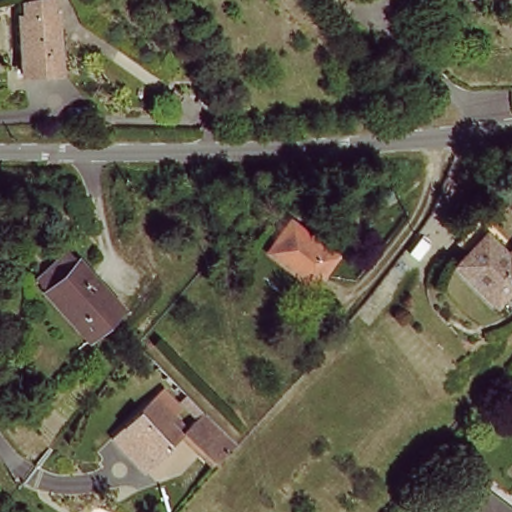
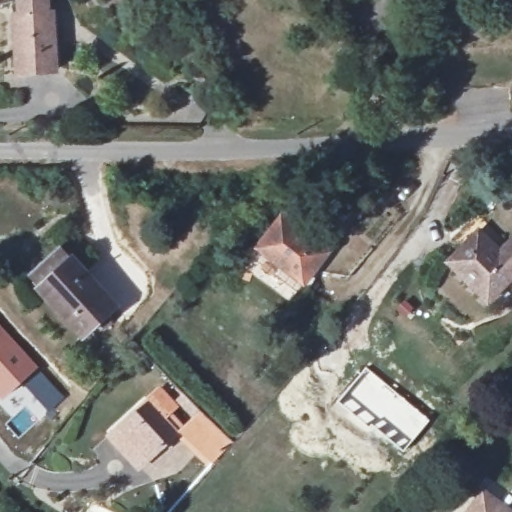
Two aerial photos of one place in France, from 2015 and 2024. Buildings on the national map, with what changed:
unchanged [(23,86),(18,15),(55,5),(61,84),(23,86)]
unchanged [(483,234),(512,263),(512,284),(492,304),(452,264),(465,251),(454,241),(478,216),(489,227),(483,234)]
unchanged [(300,285),(254,250),(279,218),(324,253),(300,285)]
unchanged [(81,340),(37,290),(26,277),(60,247),(70,259),(114,310),(81,340)]
new [(47,412),(22,383),(2,401),(0,400),(0,324),(40,368),(65,397),(47,412)]
new [(367,366),(430,420),(403,452),(336,401),(367,366)]
unchanged [(121,451),(110,439),(147,406),(176,439),(150,462),(139,472),(121,451)]
unchanged [(234,444),(215,466),(183,436),(202,415),(234,444)]
unchanged [(510,512),(470,512),(487,492),(510,512)]

